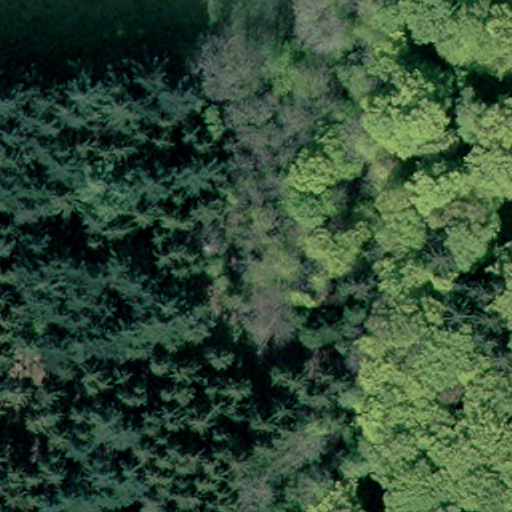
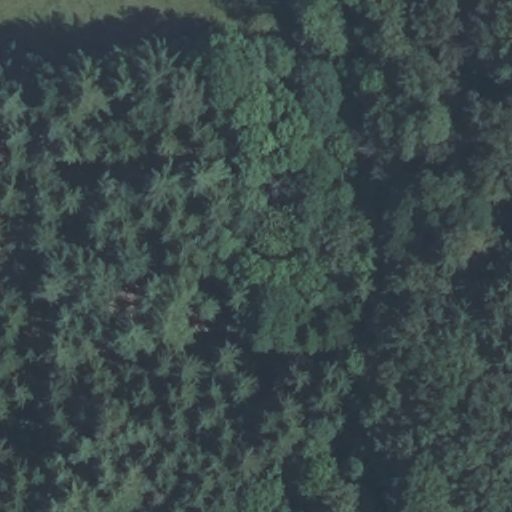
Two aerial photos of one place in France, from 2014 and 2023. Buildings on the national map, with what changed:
[]

